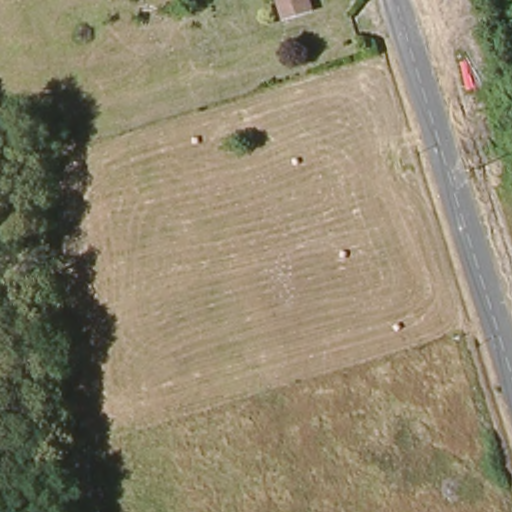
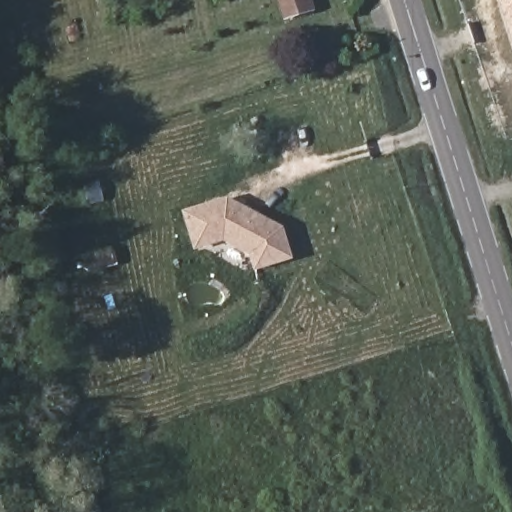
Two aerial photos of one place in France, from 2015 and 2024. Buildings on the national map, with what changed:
unchanged [(290,19),(285,0),(323,0),(325,10),(290,19)]
new [(512,0),(512,39),(499,0),(512,0)]
new [(256,271),(250,255),(225,241),(196,250),(183,209),(228,196),(285,226),(294,258),(256,271)]

